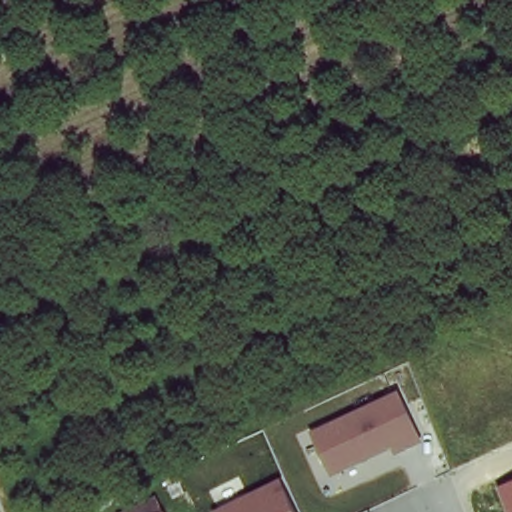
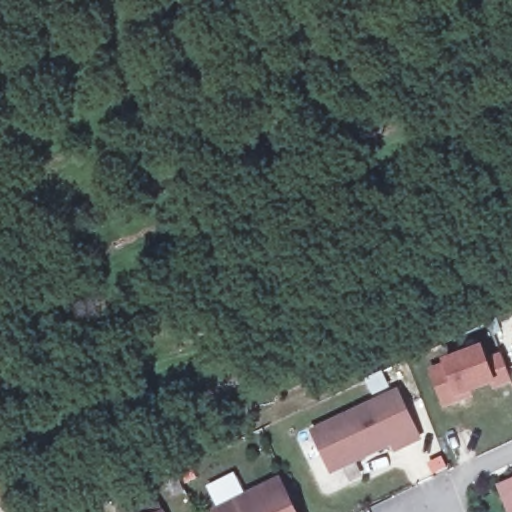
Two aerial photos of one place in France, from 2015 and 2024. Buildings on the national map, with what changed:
new [(512,326),(512,329),(511,326),(512,326)]
new [(492,385),(471,392),(473,398),(443,408),(429,370),(443,363),(442,360),(484,345),(488,357),(501,352),(512,382),(493,390),(492,385)]
unchanged [(394,454),(391,448),(331,474),(311,430),(401,390),(423,441),(394,454)]
unchanged [(498,486),(512,480),(512,512),(509,512),(498,486)]
unchanged [(294,512),(221,512),(280,481),(294,512)]
unchanged [(150,496),(158,512),(121,512),(150,496)]

